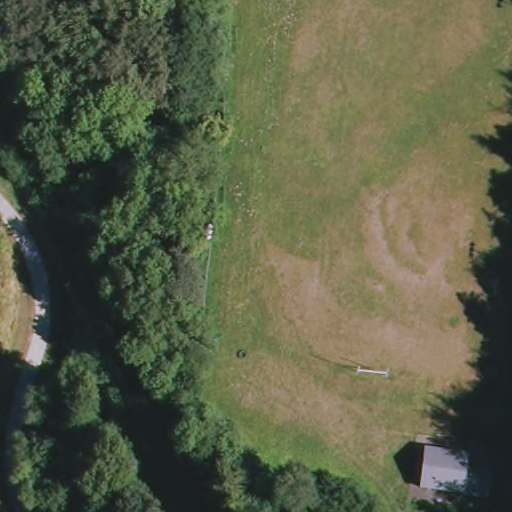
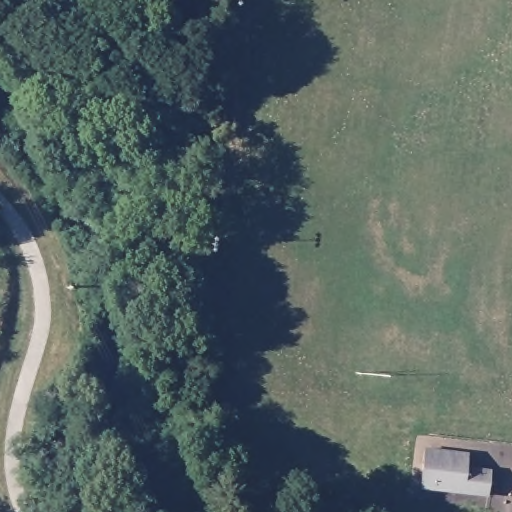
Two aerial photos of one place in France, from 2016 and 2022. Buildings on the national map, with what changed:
unchanged [(467,492),(424,485),(425,453),(465,459),(464,471),(490,474),(488,483),(486,495),(467,492)]

